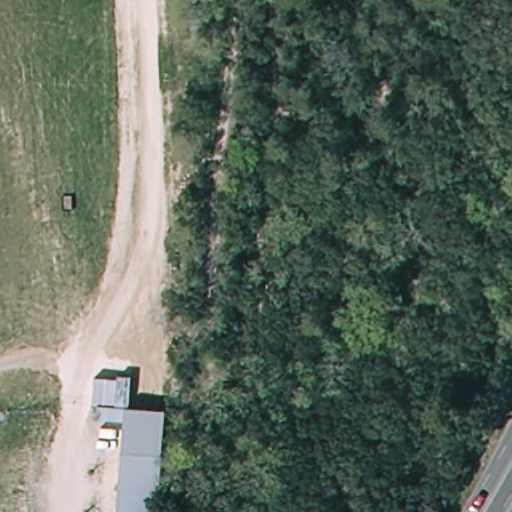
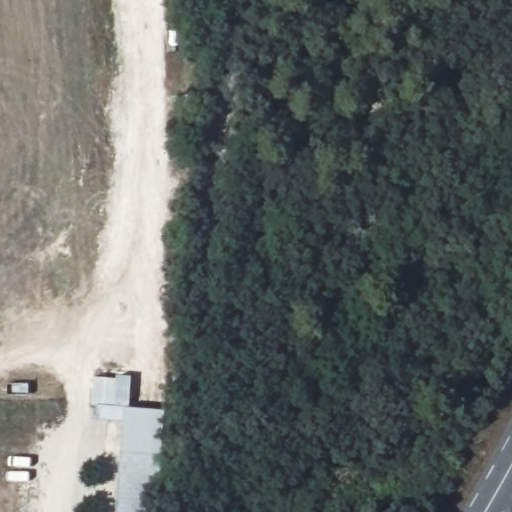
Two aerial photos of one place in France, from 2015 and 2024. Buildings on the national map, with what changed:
unchanged [(209,7),(207,34),(194,34),(193,7),(209,7)]
unchanged [(97,418),(99,405),(92,404),(95,378),(117,381),(118,377),(130,378),(129,408),(129,421),(97,418)]
unchanged [(160,512),(122,512),(129,421),(130,413),(152,415),(168,412),(160,512)]

